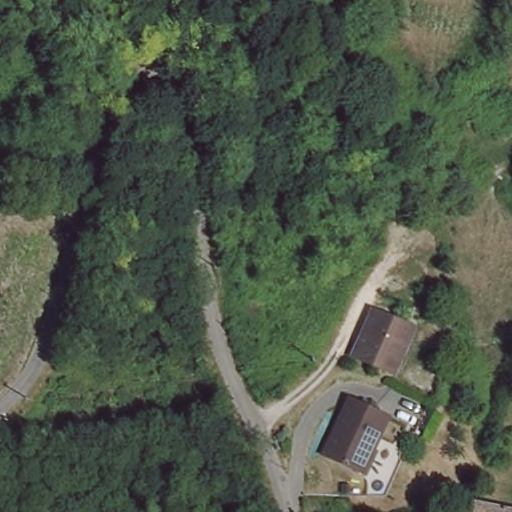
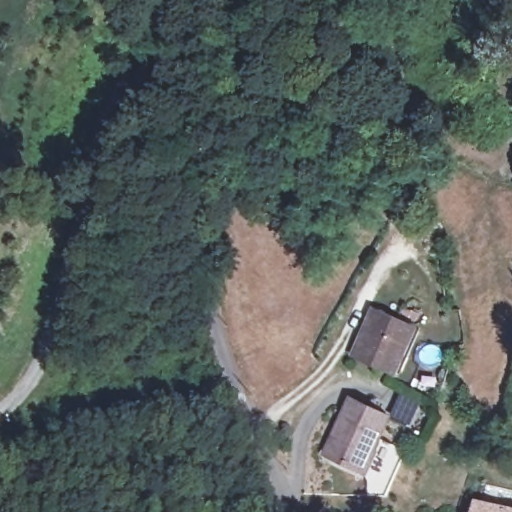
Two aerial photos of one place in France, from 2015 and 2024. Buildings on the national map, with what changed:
unchanged [(370,313),(410,333),(391,373),(353,354),(370,313)]
unchanged [(348,395),(385,416),(359,469),(321,450),(348,395)]
unchanged [(497,512),(465,512),(467,504),(497,512)]

